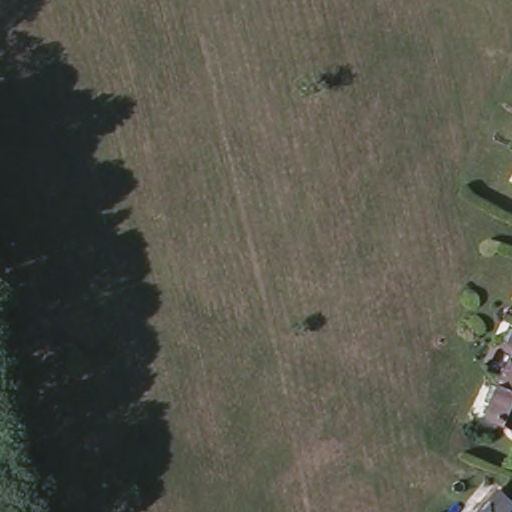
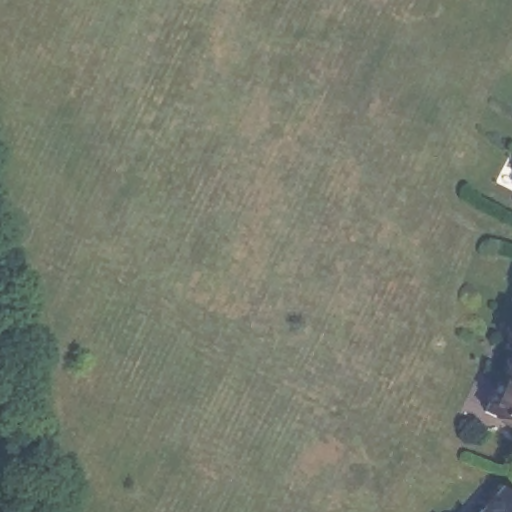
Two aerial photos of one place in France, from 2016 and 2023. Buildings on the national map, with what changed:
unchanged [(507,340),(512,329),(512,341),(507,340)]
unchanged [(485,409),(512,344),(512,420),(485,409)]
unchanged [(512,495),(512,512),(483,512),(503,487),(512,495)]

